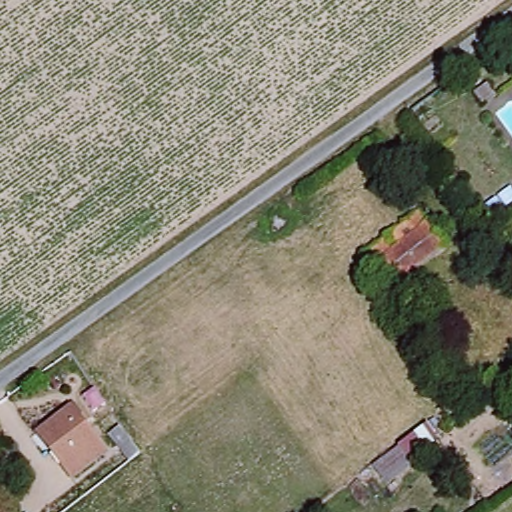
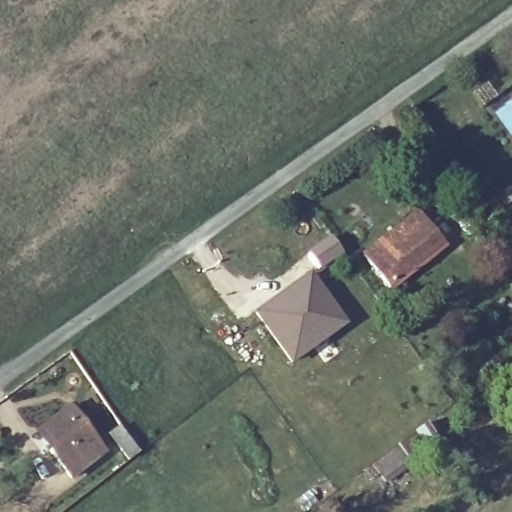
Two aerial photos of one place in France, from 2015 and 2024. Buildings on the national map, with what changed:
unchanged [(383,292),(355,254),(417,212),(444,250),(383,292)]
new [(329,236),(343,254),(321,270),(307,252),(329,236)]
new [(311,270),(348,324),(291,365),(253,312),(311,270)]
unchanged [(102,452),(65,478),(31,430),(69,405),(102,452)]
unchanged [(450,424),(425,440),(417,430),(441,412),(450,424)]
unchanged [(138,455),(124,466),(110,448),(125,437),(138,455)]

